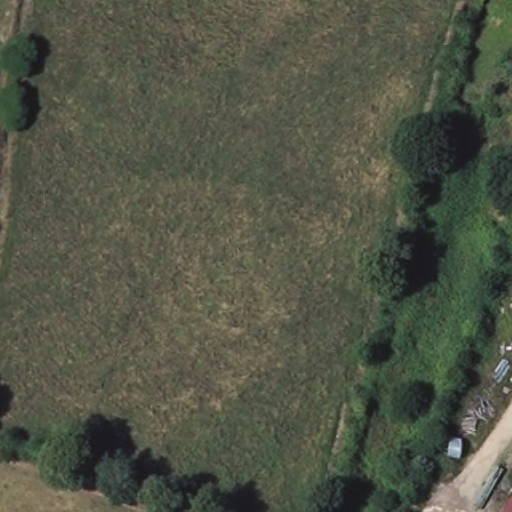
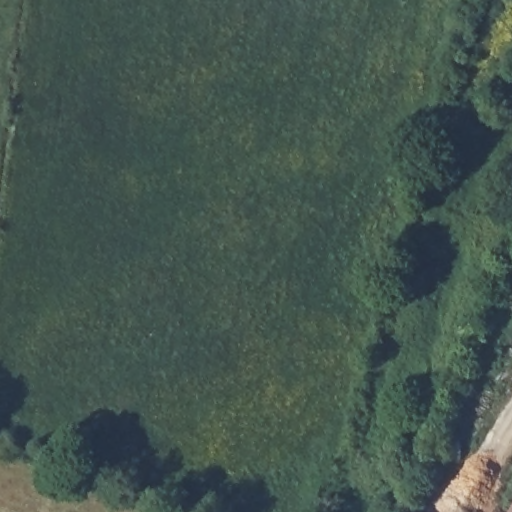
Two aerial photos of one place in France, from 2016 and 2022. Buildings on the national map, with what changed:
unchanged [(510,512),(512,509),(512,512),(510,512)]

